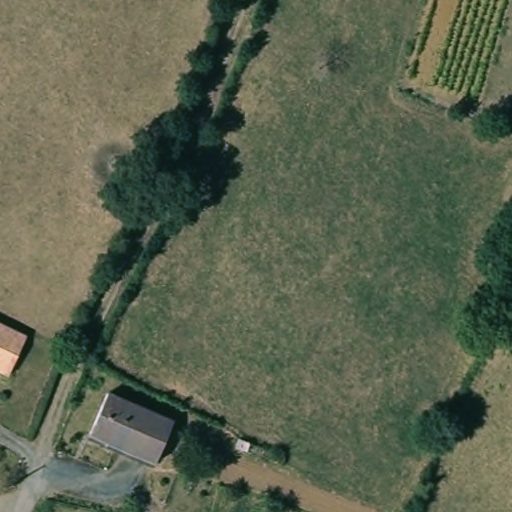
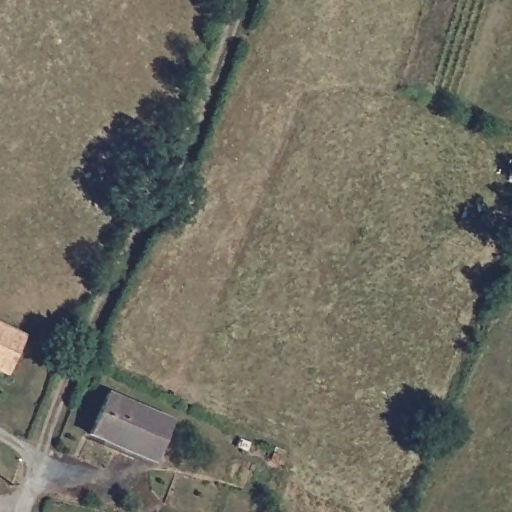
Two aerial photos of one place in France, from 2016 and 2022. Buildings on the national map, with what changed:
unchanged [(8,375),(0,371),(0,323),(26,336),(8,375)]
unchanged [(175,416),(172,421),(156,461),(92,433),(110,390),(126,396),(175,416)]

